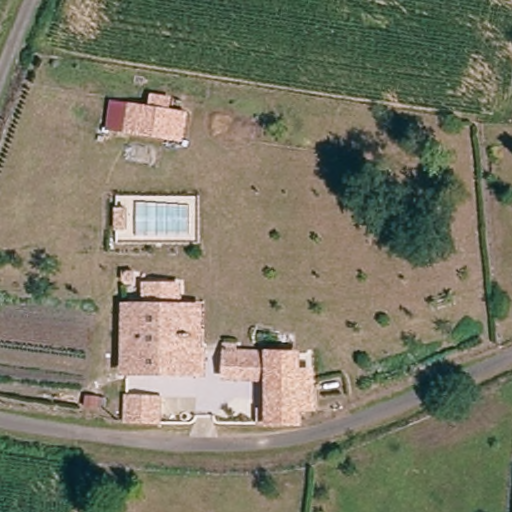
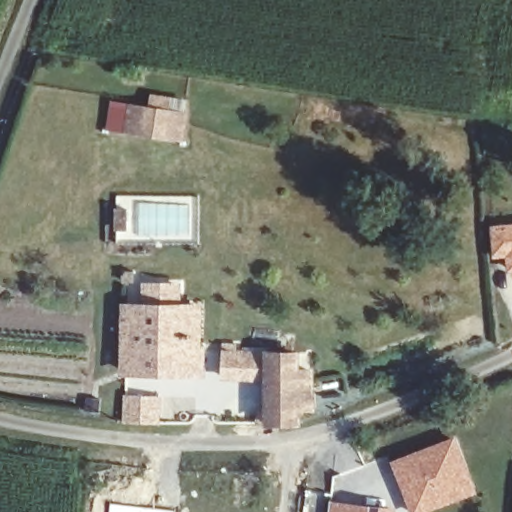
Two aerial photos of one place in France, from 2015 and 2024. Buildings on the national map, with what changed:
unchanged [(148,105),(150,93),(171,96),(170,109),(187,111),(183,142),(106,130),(110,100),(148,105)]
new [(512,223),(512,272),(506,273),(504,258),(491,259),(489,225),(512,223)]
unchanged [(193,355),(201,356),(199,378),(119,378),(123,310),(124,295),(159,295),(159,296),(158,310),(195,311),(193,355)]
unchanged [(252,380),(213,379),(212,351),(301,353),(300,410),(289,410),(289,421),(252,425),(252,380)]
unchanged [(119,396),(150,396),(151,427),(125,427),(117,426),(119,396)]
new [(456,435),(476,493),(427,512),(409,512),(389,460),(456,435)]
new [(332,501),(396,508),(396,512),(331,512),(332,501)]
new [(110,505),(176,511),(176,512),(109,512),(110,505)]

